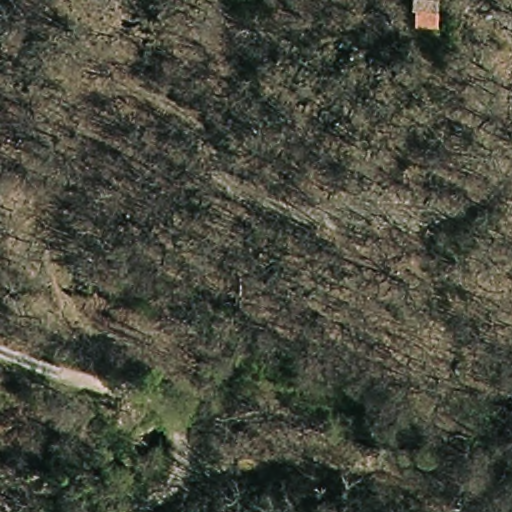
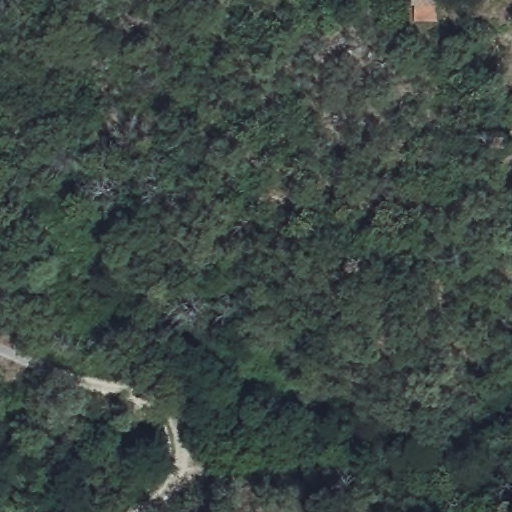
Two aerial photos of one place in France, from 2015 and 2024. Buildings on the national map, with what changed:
unchanged [(420,9),(413,9),(414,0),(441,0),(441,10),(420,9)]

